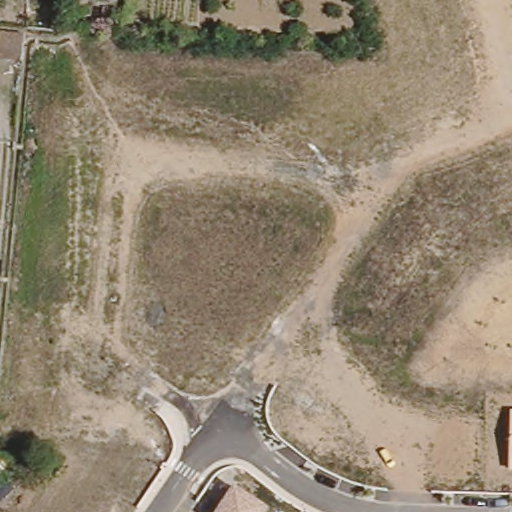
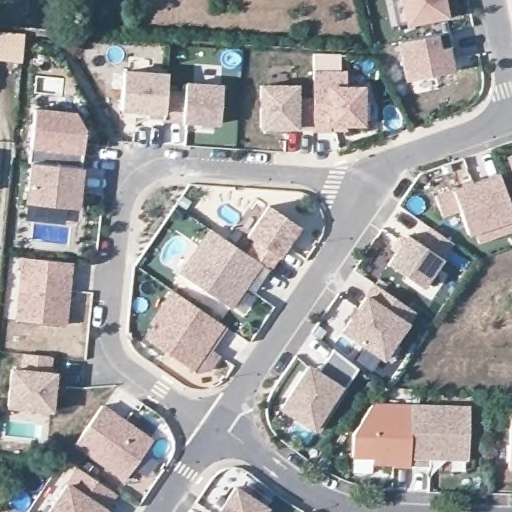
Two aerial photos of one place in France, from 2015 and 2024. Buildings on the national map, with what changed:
new [(392,0),(452,0),(455,15),(407,24),(397,26),(392,0)]
new [(449,31),(452,46),(447,48),(452,71),(407,80),(399,41),(449,31)]
unchanged [(32,40),(29,67),(0,64),(0,37),(32,40)]
new [(341,55),(341,70),(347,71),(347,86),(364,86),(365,128),(330,128),(330,132),(314,132),(298,129),(259,130),(258,85),(299,85),(300,97),(314,97),(314,55),(341,55)]
new [(184,123),(163,121),(149,120),(148,115),(139,115),(138,113),(120,111),(122,70),(169,72),(167,89),(186,90),(187,84),(222,85),(218,125),(184,123)]
new [(35,110),(76,115),(85,130),(81,167),(30,162),(35,110)]
new [(512,157),(512,168),(509,158),(512,157)]
new [(30,162),(81,167),(77,209),(25,204),(30,162)]
new [(474,231),(467,233),(459,209),(441,215),(435,196),(499,174),(512,213),(512,230),(477,242),(474,231)]
new [(247,254),(256,241),(248,236),(269,205),(299,226),(270,269),(247,254)]
new [(245,286),(230,307),(181,273),(211,229),(247,254),(270,269),(260,283),(254,292),(245,286)]
new [(444,257),(425,290),(385,265),(406,234),(444,257)]
new [(16,321),(20,259),(76,263),(66,326),(16,321)]
new [(418,311),(409,325),(385,362),(339,331),(365,292),(374,282),(418,311)]
new [(156,326),(152,323),(174,291),(227,327),(218,340),(214,337),(207,347),(220,355),(210,370),(196,372),(147,339),(156,326)]
new [(307,364),(320,372),(333,350),(359,370),(344,390),(345,391),(319,433),(315,430),(278,408),(307,364)]
new [(12,368),(22,370),(24,353),(51,356),(49,372),(55,373),(51,410),(8,405),(12,368)]
new [(155,440),(126,481),(75,445),(105,403),(155,440)]
unchanged [(352,434),(372,405),(411,406),(410,465),(393,465),(393,463),(373,462),(373,456),(352,456),(352,434)]
unchanged [(410,465),(411,406),(470,407),(468,458),(430,457),(430,467),(410,467),(410,465)]
unchanged [(512,472),(510,472),(510,408),(512,409),(512,472)]
new [(117,493),(105,510),(105,512),(49,512),(79,467),(117,493)]
unchanged [(267,512),(218,512),(236,485),(271,506),(267,512)]

